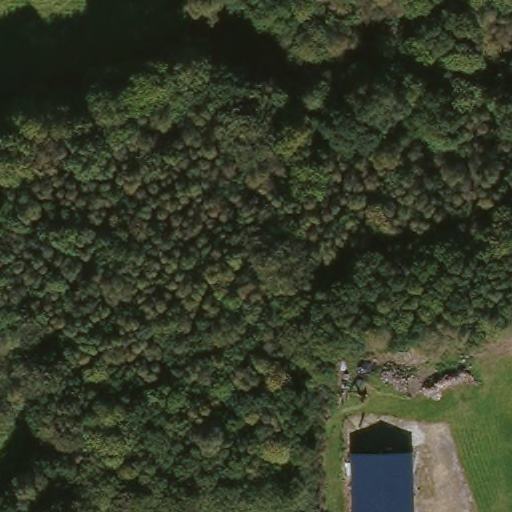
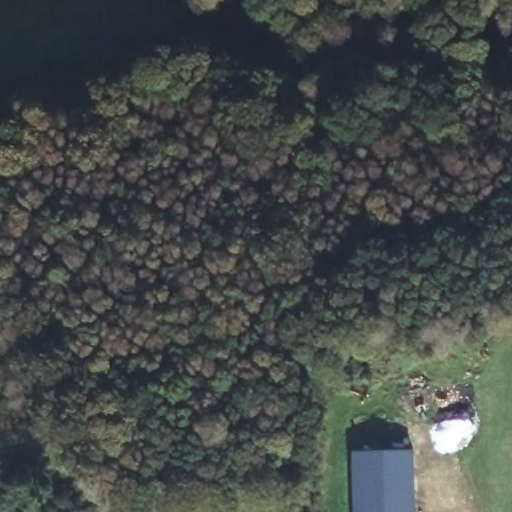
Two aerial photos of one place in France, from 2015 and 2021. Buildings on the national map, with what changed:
unchanged [(412,450),(413,512),(354,512),(353,451),(412,450)]

